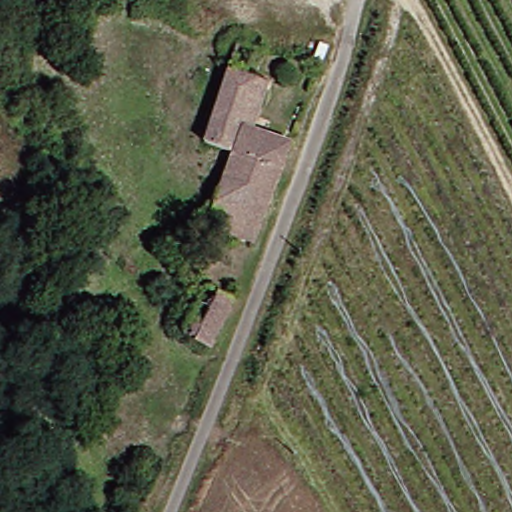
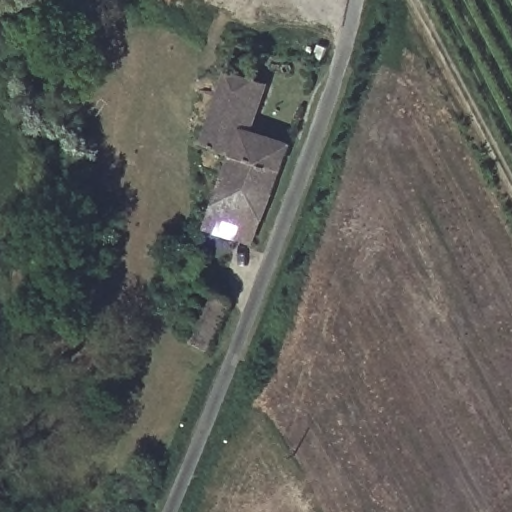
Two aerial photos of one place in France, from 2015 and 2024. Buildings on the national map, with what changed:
unchanged [(244,35),(234,62),(221,57),(231,30),(244,35)]
unchanged [(244,231),(212,219),(239,143),(211,134),(237,63),(271,75),(254,122),(294,136),(276,185),(258,236),(244,231)]
unchanged [(217,345),(189,334),(207,288),(235,299),(217,345)]

